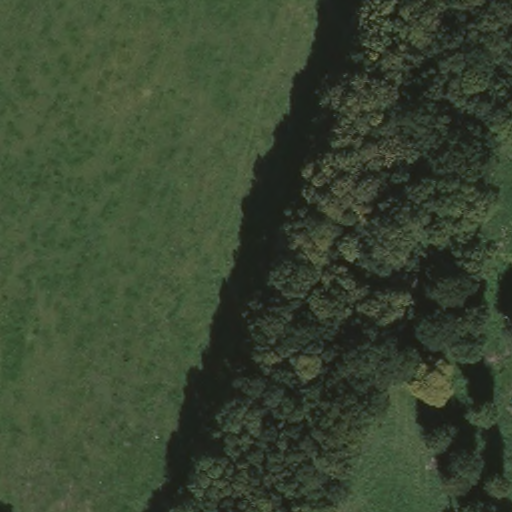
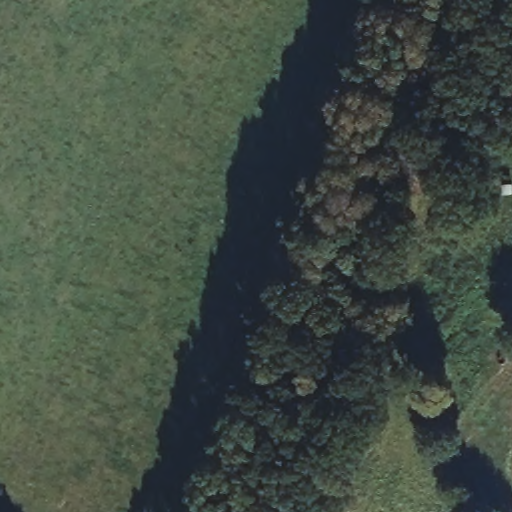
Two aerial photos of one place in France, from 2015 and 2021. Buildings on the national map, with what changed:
[]

